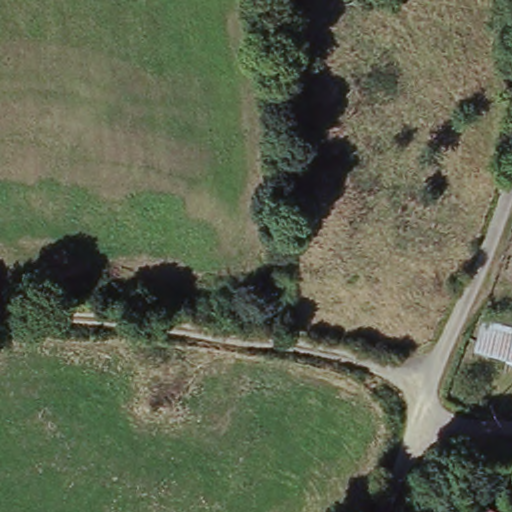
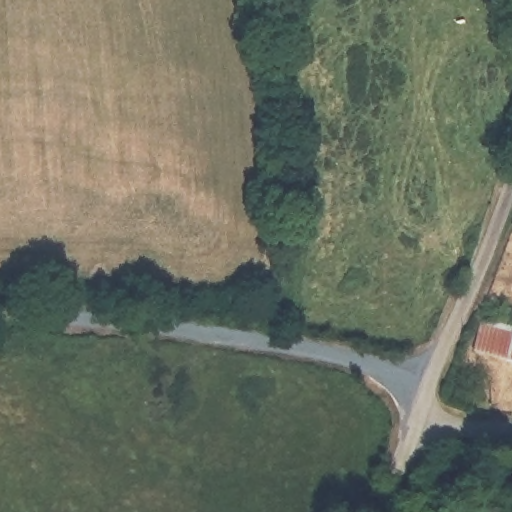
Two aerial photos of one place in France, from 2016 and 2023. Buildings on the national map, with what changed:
unchanged [(481,322),(512,329),(512,364),(474,354),(481,322)]
unchanged [(449,497),(443,512),(410,512),(420,487),(449,497)]
unchanged [(459,503),(512,510),(512,512),(457,512),(459,503)]

